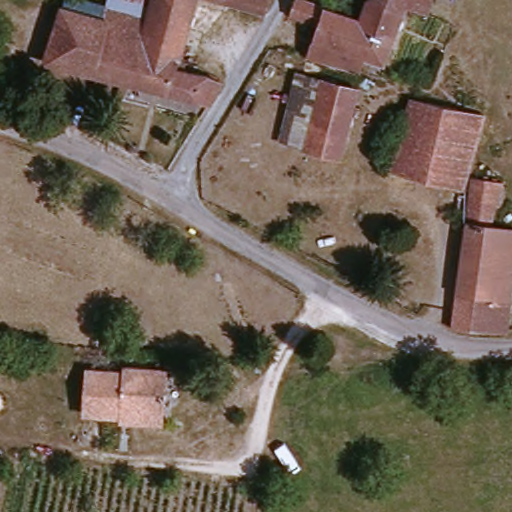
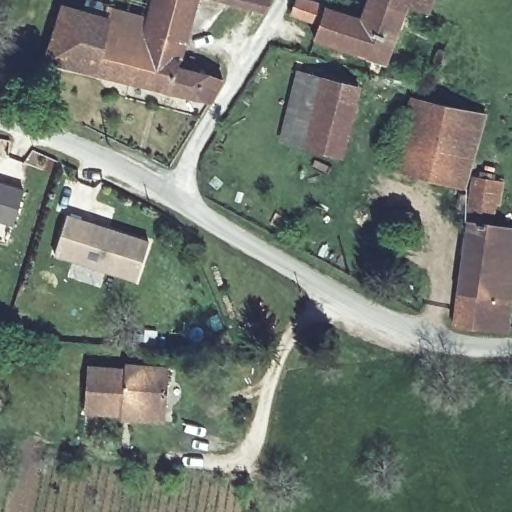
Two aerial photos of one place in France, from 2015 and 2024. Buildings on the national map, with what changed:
unchanged [(67,0),(80,0),(115,7),(112,22),(148,29),(155,0),(189,0),(175,68),(222,77),(212,108),(64,75),(58,103),(44,99),(63,16),(67,0)]
unchanged [(218,3),(204,0),(265,0),(260,11),(218,3)]
unchanged [(290,22),(298,4),(360,26),(368,0),(381,0),(405,9),(389,63),(367,58),(313,41),(317,31),(290,22)]
unchanged [(405,9),(381,0),(431,0),(427,15),(405,9)]
unchanged [(280,135),(294,84),(317,91),(303,142),(280,135)]
unchanged [(352,100),(338,153),(303,142),(317,91),(352,100)]
unchanged [(463,188),(395,171),(414,99),(459,110),(461,104),(482,109),(463,188)]
unchanged [(498,180),(492,229),(512,233),(512,290),(504,344),(450,338),(476,175),(498,180)]
new [(23,192),(12,225),(0,221),(0,185),(23,192)]
new [(67,215),(150,239),(138,279),(56,255),(67,215)]
unchanged [(125,421),(125,417),(86,414),(88,372),(127,374),(127,368),(168,371),(168,413),(167,424),(125,421)]

